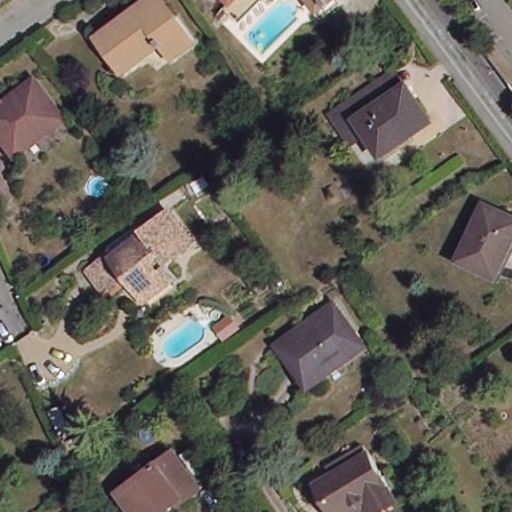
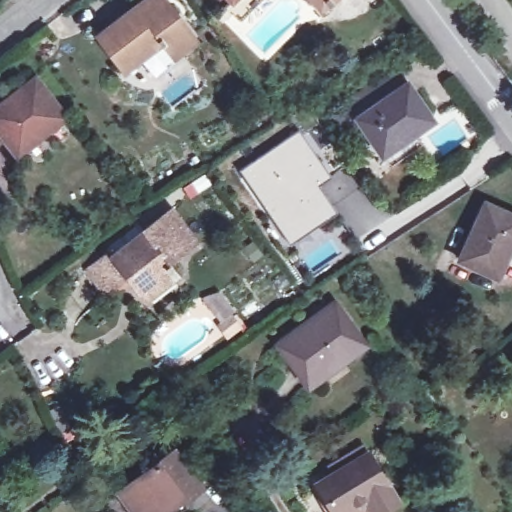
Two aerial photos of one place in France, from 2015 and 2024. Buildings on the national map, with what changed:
unchanged [(180,66),(165,46),(127,76),(103,44),(155,5),(161,0),(164,0),(175,15),(202,49),(180,66)]
unchanged [(240,7),(233,0),(248,0),(240,7)]
unchanged [(332,25),(325,17),(311,0),(345,0),(344,1),(350,9),(332,25)]
unchanged [(372,126),(383,141),(367,152),(347,121),(412,76),(422,91),(372,126)]
unchanged [(20,157),(0,131),(0,111),(40,81),(70,119),(20,157)]
unchanged [(432,136),(396,162),(383,141),(372,126),(422,91),(444,122),(447,127),(432,136)]
new [(298,131),(330,177),(317,185),(335,210),(290,242),(240,170),(298,131)]
unchanged [(124,255),(152,234),(149,229),(177,207),(202,242),(175,262),(180,269),(150,292),(137,273),(114,290),(95,267),(119,249),(124,255)]
unchanged [(497,282),(462,267),(489,209),(512,220),(512,250),(497,282)]
unchanged [(370,350),(314,392),(282,351),(339,308),(370,350)]
unchanged [(122,492),(177,452),(205,490),(190,502),(194,507),(186,512),(133,512),(136,511),(122,492)]
unchanged [(394,512),(327,512),(316,495),(368,462),(397,511),(394,512)]

